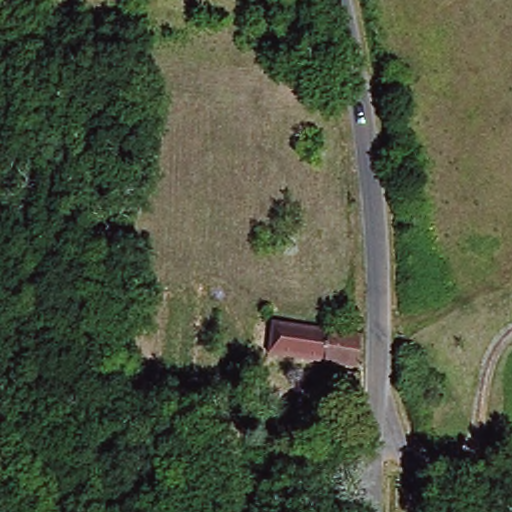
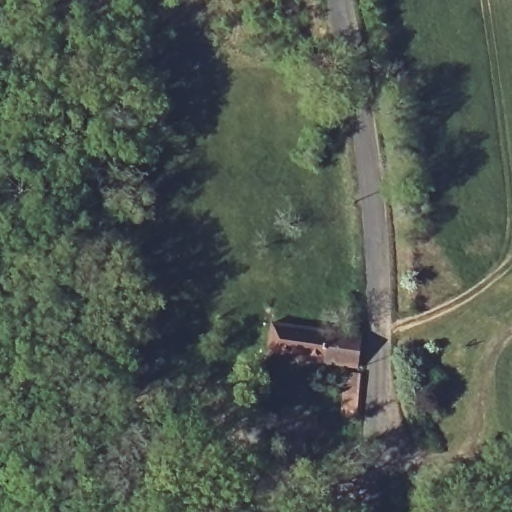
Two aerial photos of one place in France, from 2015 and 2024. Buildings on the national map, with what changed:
unchanged [(334,337),(359,342),(356,372),(266,358),(271,326),(334,337)]

